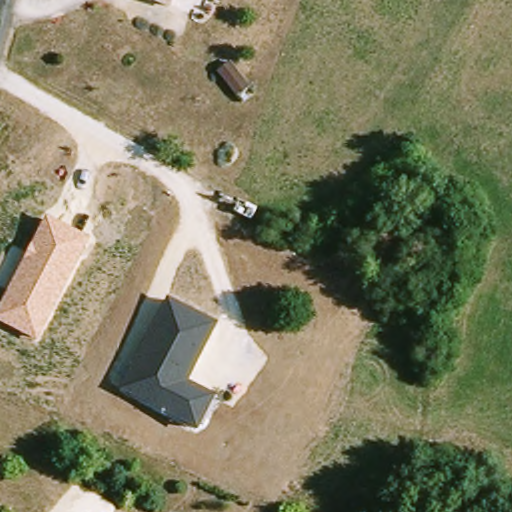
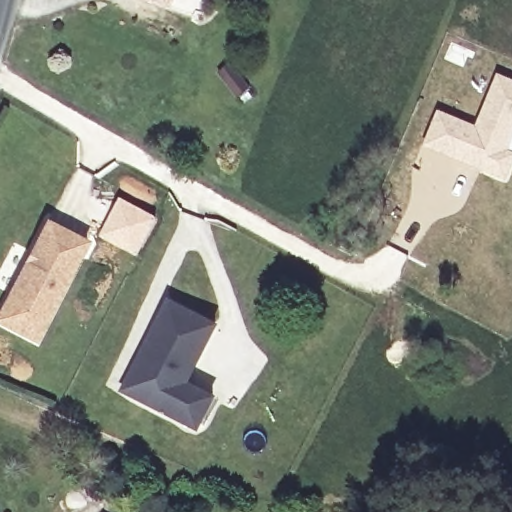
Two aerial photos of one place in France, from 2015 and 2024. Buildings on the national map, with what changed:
unchanged [(149,0),(178,0),(174,10),(149,0)]
new [(235,97),(216,73),(230,62),(248,88),(235,97)]
new [(437,108),(475,123),(496,72),(512,79),(512,170),(507,182),(422,144),(437,108)]
demolished [(238,116),(220,92),(234,81),(252,107),(238,116)]
new [(119,196),(158,217),(137,257),(98,236),(119,196)]
unchanged [(37,343),(0,324),(0,308),(45,217),(90,240),(37,343)]
unchanged [(220,324),(188,384),(218,399),(198,435),(119,393),(168,299),(220,324)]

